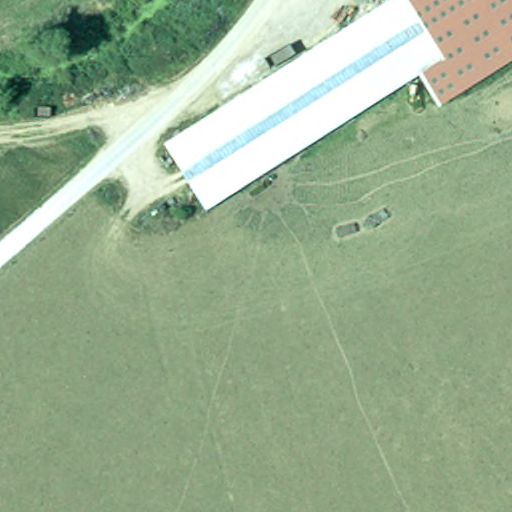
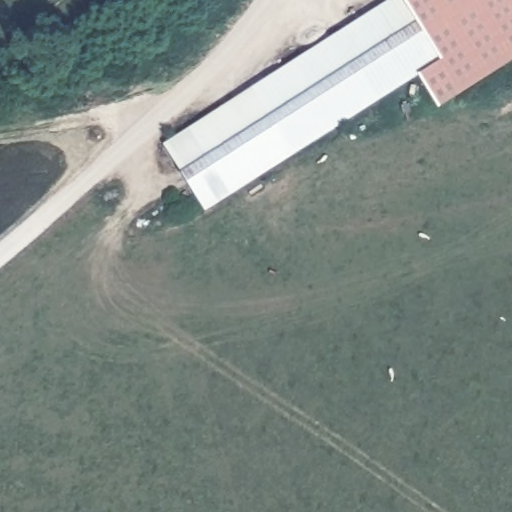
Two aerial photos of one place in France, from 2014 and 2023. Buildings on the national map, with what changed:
unchanged [(433,103),(413,70),(202,203),(163,141),(385,0),(512,0),(512,53),(477,75),(433,103)]

